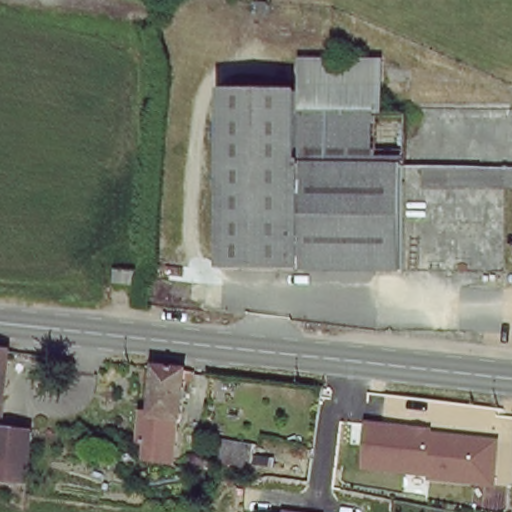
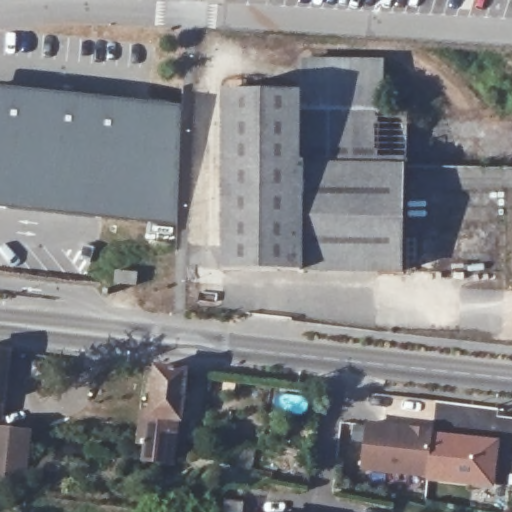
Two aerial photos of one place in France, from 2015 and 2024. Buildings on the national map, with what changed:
unchanged [(299,91),(300,62),(386,64),(386,117),(379,117),(299,114),(299,91)]
unchanged [(219,263),(223,89),(299,91),(299,114),(295,265),(219,263)]
new [(175,219),(0,205),(0,91),(185,105),(175,219)]
unchanged [(299,114),(379,117),(377,160),(405,162),(402,270),(295,265),(299,114)]
unchanged [(4,420),(0,420),(0,352),(11,353),(4,420)]
unchanged [(181,424),(176,425),(173,453),(140,448),(143,419),(150,420),(156,374),(186,377),(181,424)]
unchanged [(499,438),(494,487),(360,469),(366,423),(499,438)]
unchanged [(31,441),(30,480),(0,479),(0,429),(30,431),(31,441)]
unchanged [(228,466),(227,466),(231,444),(263,452),(260,473),(228,466)]
unchanged [(303,512),(282,512),(283,508),(303,512)]

